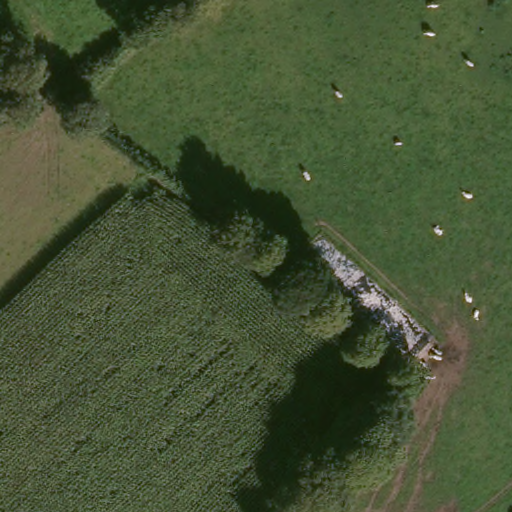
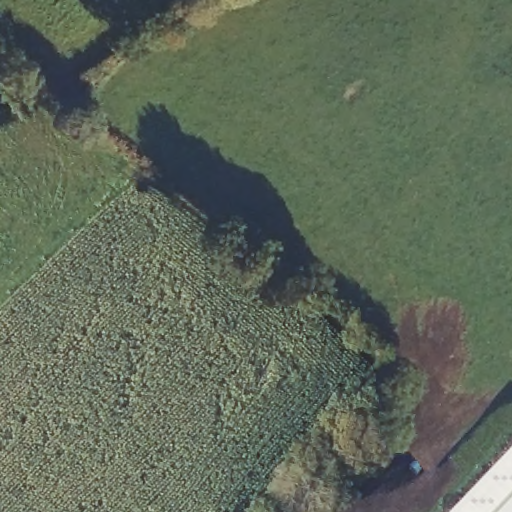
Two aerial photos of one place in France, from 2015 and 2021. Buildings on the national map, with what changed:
new [(512,450),(512,512),(453,512),(512,450)]

